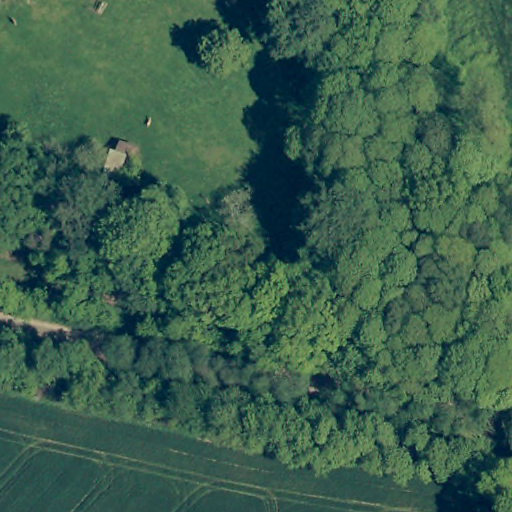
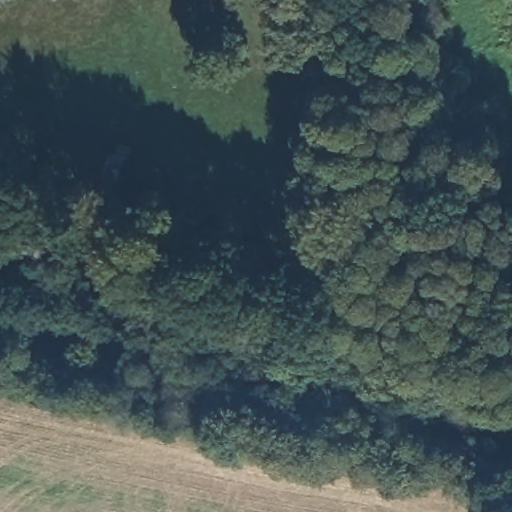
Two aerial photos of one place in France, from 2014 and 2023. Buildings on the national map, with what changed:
[]

